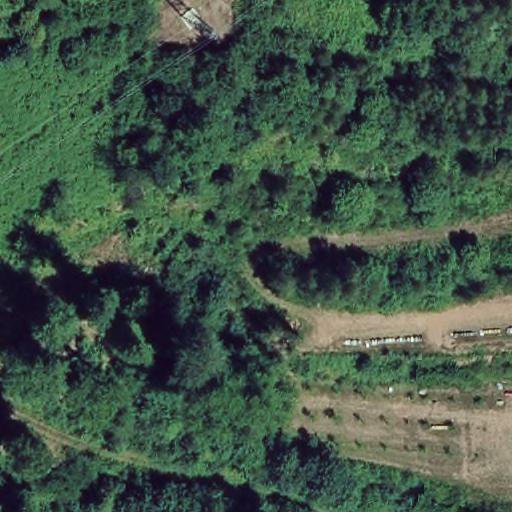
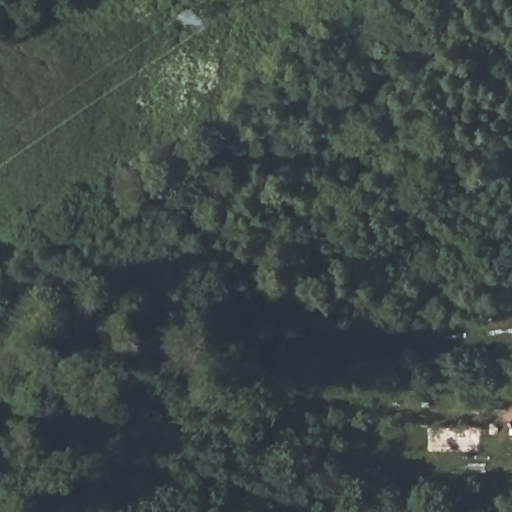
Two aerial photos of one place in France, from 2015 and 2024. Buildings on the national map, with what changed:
[]

